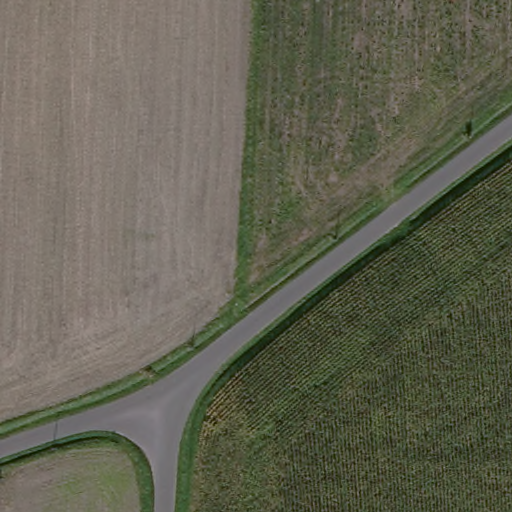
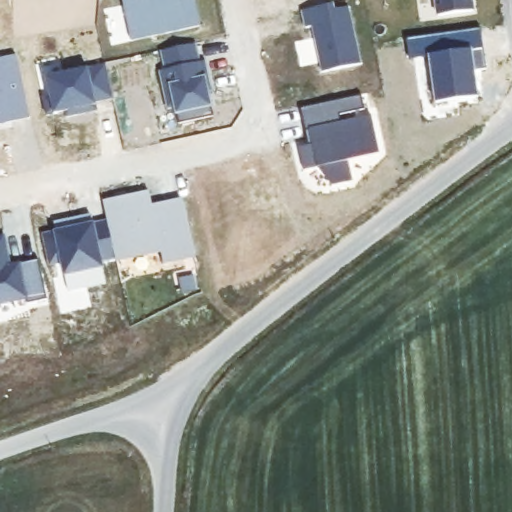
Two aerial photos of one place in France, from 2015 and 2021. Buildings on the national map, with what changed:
new [(128,30),(121,0),(194,0),(200,25),(150,36),(130,40),(128,30)]
new [(473,10),(438,15),(436,0),(472,0),(473,10)]
new [(332,3),(334,8),(347,5),(360,62),(321,71),(311,25),(305,26),(301,9),(332,3)]
new [(165,70),(160,51),(195,43),(199,62),(205,60),(208,77),(205,78),(213,116),(178,123),(175,107),(167,109),(159,71),(165,70)]
new [(30,118),(0,125),(0,59),(15,55),(30,118)]
new [(63,111),(46,115),(42,98),(50,96),(45,77),(105,64),(112,98),(95,102),(96,111),(77,115),(65,118),(63,111)]
new [(304,130),(299,107),(360,93),(363,108),(338,114),(340,121),(370,114),(378,153),(347,159),(352,180),(331,185),(328,174),(316,166),(302,169),(297,147),(307,145),(304,130)]
new [(152,206),(159,205),(181,199),(194,256),(164,263),(160,251),(116,261),(115,257),(107,221),(102,202),(149,192),(152,206)]
new [(54,223),(68,219),(90,215),(92,224),(107,221),(115,257),(100,261),(105,283),(69,291),(62,262),(50,264),(44,235),(55,232),(54,223)]
new [(19,264),(39,259),(47,300),(27,304),(26,299),(0,305),(0,237),(4,236),(10,266),(19,264)]

